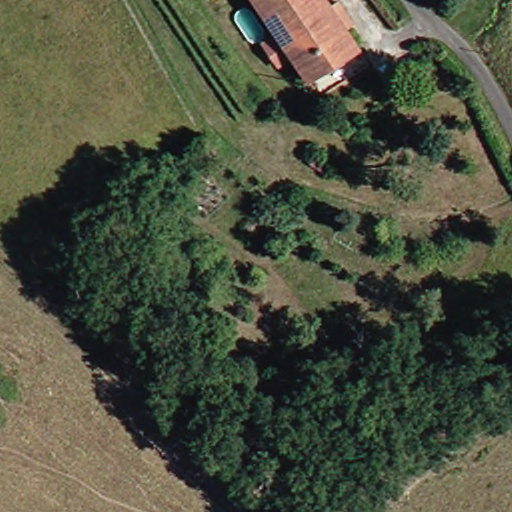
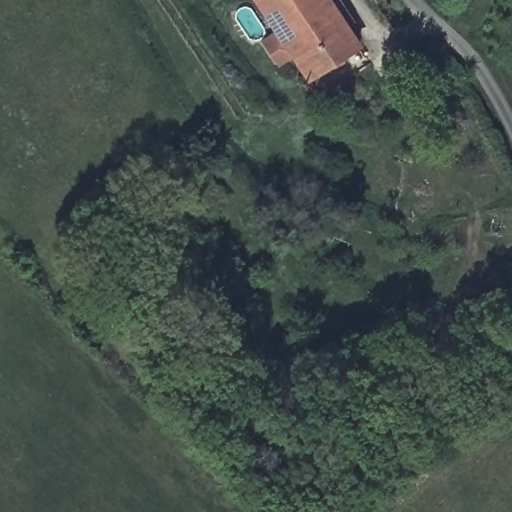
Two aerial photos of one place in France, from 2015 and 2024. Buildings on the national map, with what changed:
unchanged [(334,0),(359,43),(306,80),(260,0),(334,0)]

